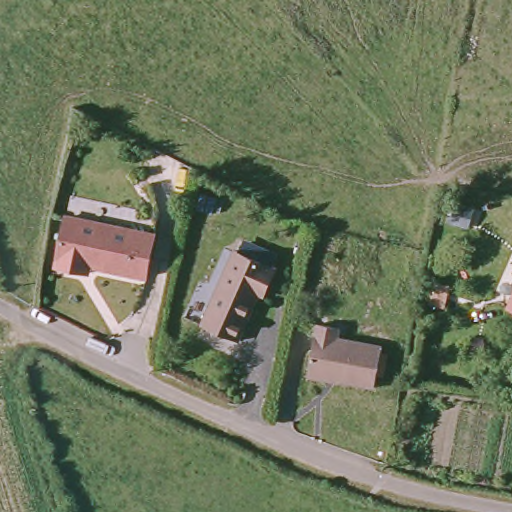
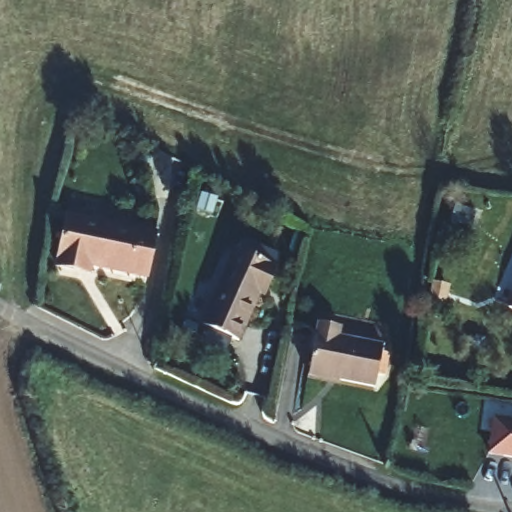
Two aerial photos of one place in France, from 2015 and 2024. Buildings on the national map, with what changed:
unchanged [(80,269),(56,265),(67,213),(156,231),(148,275),(90,264),(88,271),(80,269)]
unchanged [(269,295),(262,292),(240,346),(205,331),(237,255),(278,273),(269,295)]
unchanged [(437,284),(448,286),(445,303),(443,310),(432,308),(434,301),(437,284)]
unchanged [(340,326),(338,338),(383,347),(377,385),(310,372),(319,322),(340,326)]
new [(487,456),(492,417),(512,420),(512,459),(487,456)]

